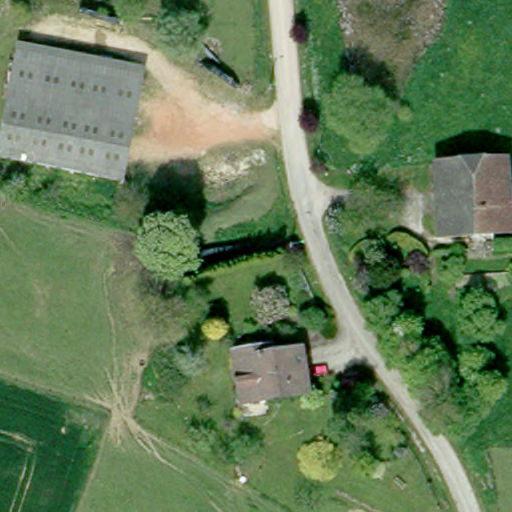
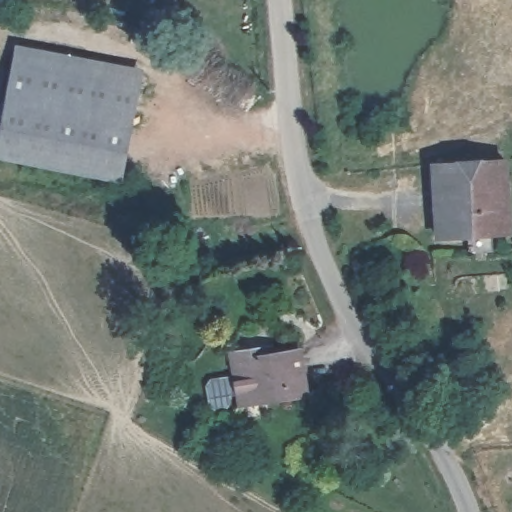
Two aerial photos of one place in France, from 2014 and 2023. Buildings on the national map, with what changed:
unchanged [(20,51),(21,44),(145,68),(143,75),(143,80),(134,121),(11,95),(19,56),(20,51)]
unchanged [(122,180),(0,155),(0,150),(11,95),(134,121),(122,180)]
unchanged [(474,231),(446,232),(441,159),(510,154),(512,174),(512,227),(496,229),(497,247),(474,248),(474,231)]
unchanged [(243,392),(238,352),(266,348),(278,347),(279,355),(306,352),(312,392),(269,397),(244,401),(243,392)]

